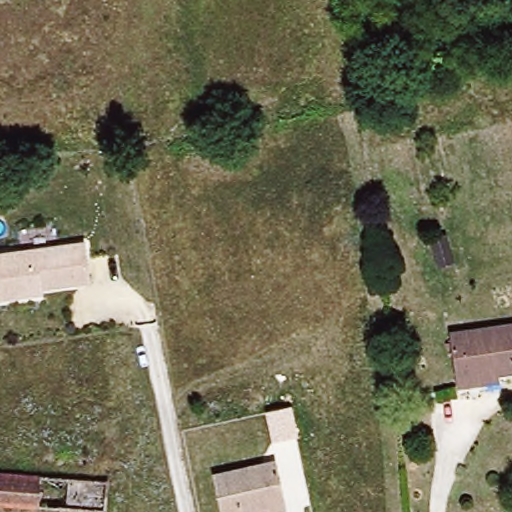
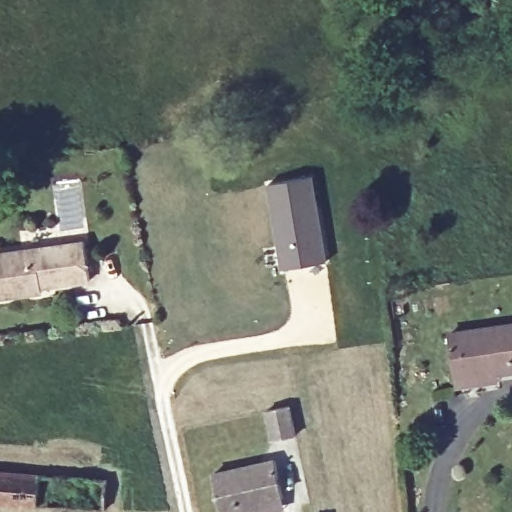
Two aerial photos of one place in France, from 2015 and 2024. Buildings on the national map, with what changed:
new [(313,176),(322,217),(327,261),(282,268),(266,184),(313,176)]
unchanged [(85,240),(91,280),(42,287),(43,296),(0,301),(0,248),(85,240)]
unchanged [(461,378),(452,336),(512,324),(512,371),(504,372),(506,386),(462,391),(461,378)]
new [(290,407),(296,436),(274,441),(268,411),(290,407)]
unchanged [(285,508),(262,512),(221,512),(213,473),(273,460),(285,508)]
unchanged [(110,508),(0,503),(0,475),(42,477),(96,479),(112,480),(110,508)]

